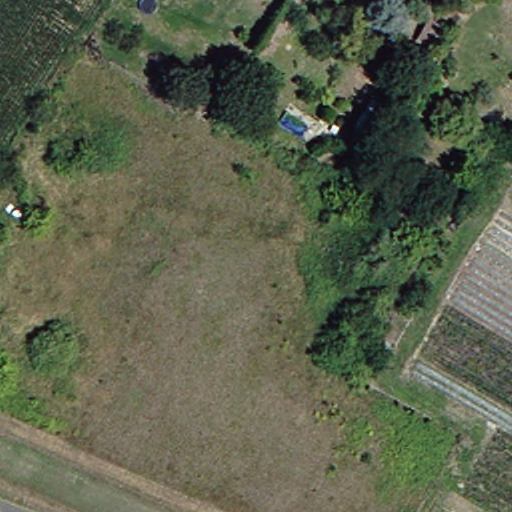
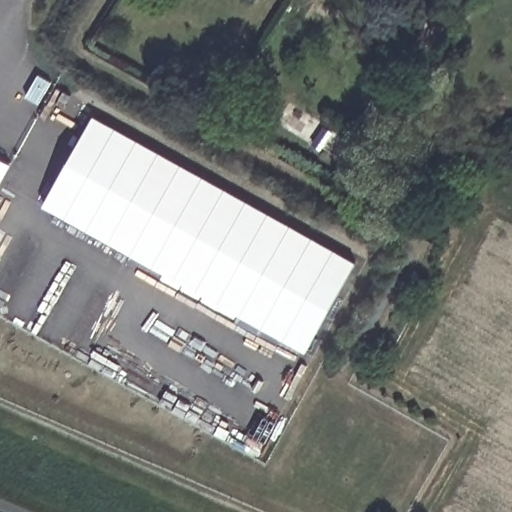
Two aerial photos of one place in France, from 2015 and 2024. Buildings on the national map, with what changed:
new [(356,263),(305,350),(43,204),(94,116),(356,263)]
new [(11,163),(0,183),(0,158),(11,163)]

